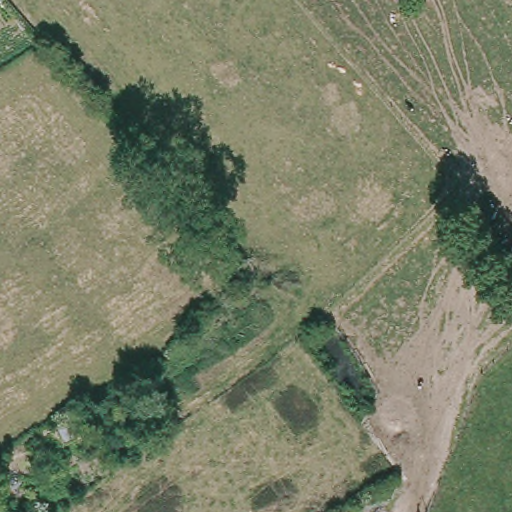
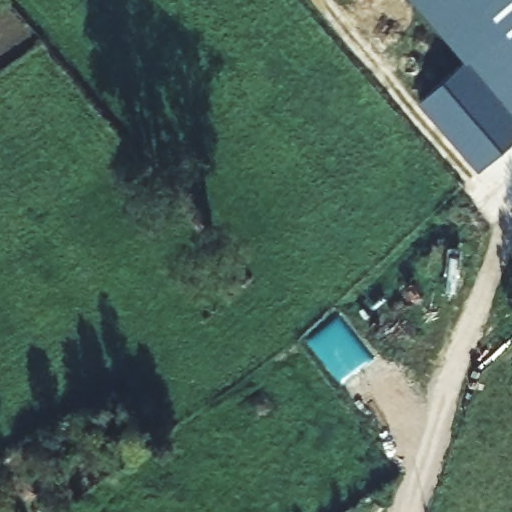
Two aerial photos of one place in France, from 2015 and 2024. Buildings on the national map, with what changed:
new [(412,0),(512,0),(512,140),(480,169),(420,101),(465,61),(412,0)]

